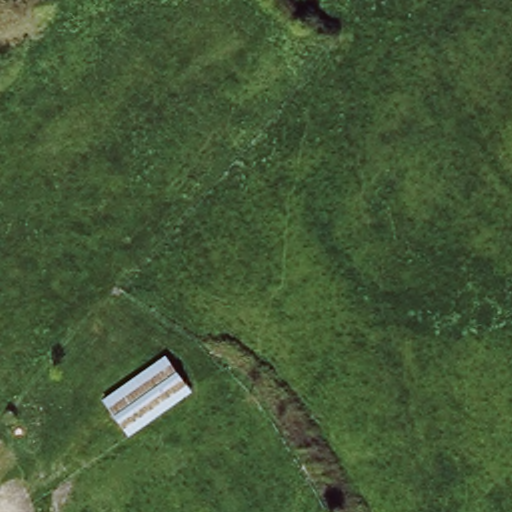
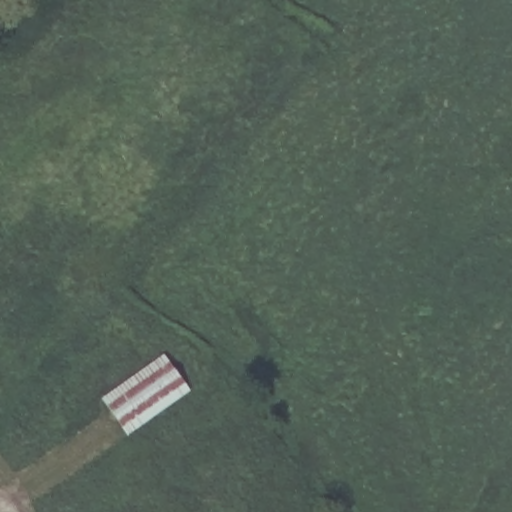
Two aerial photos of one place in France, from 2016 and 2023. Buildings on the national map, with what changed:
unchanged [(165,357),(185,390),(120,433),(97,397),(165,357)]

